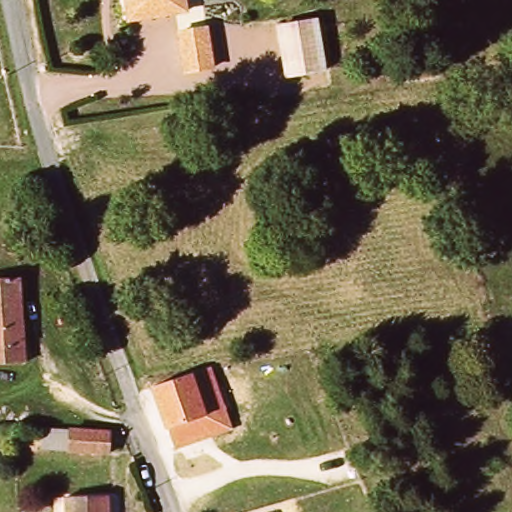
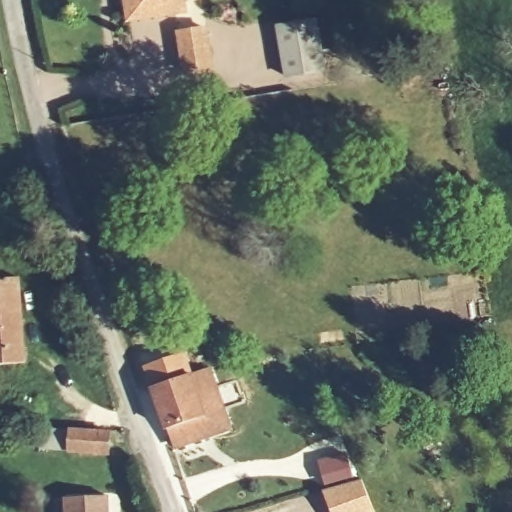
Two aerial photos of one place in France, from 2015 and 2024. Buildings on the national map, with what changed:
unchanged [(129,18),(126,0),(182,0),(183,10),(129,18)]
unchanged [(315,20),(323,70),(285,76),(277,26),(315,20)]
unchanged [(176,30),(204,26),(210,66),(183,71),(176,30)]
unchanged [(22,279),(27,363),(0,364),(0,280),(22,279)]
unchanged [(210,368),(233,430),(173,449),(166,431),(202,419),(188,376),(210,368)]
unchanged [(151,387),(188,376),(202,419),(166,431),(151,387)]
unchanged [(69,430),(110,432),(108,455),(67,453),(40,449),(41,429),(69,430)]
new [(316,464),(340,458),(341,464),(346,479),(320,487),(316,471),(318,470),(316,464)]
new [(357,483),(369,512),(327,512),(319,493),(357,483)]
unchanged [(65,504),(109,502),(110,512),(66,512),(65,504)]

